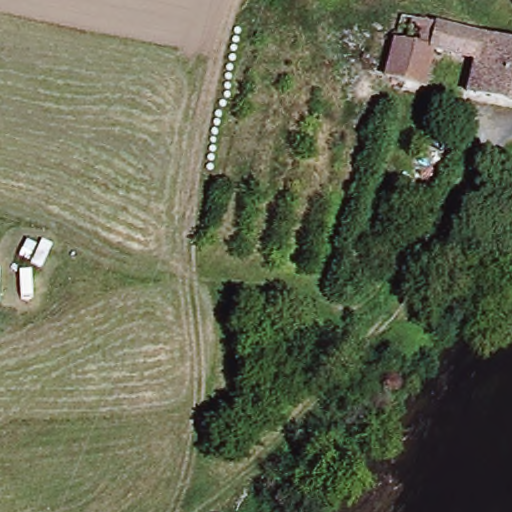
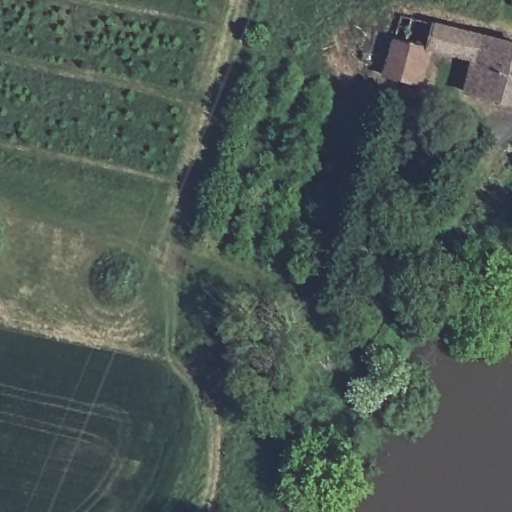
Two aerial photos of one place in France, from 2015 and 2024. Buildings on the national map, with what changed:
unchanged [(463,89),(470,59),(425,48),(417,81),(380,72),(360,68),(368,33),(387,38),(393,13),(512,41),(512,86),(509,100),(463,89)]
unchanged [(17,310),(18,275),(35,276),(35,311),(17,310)]

